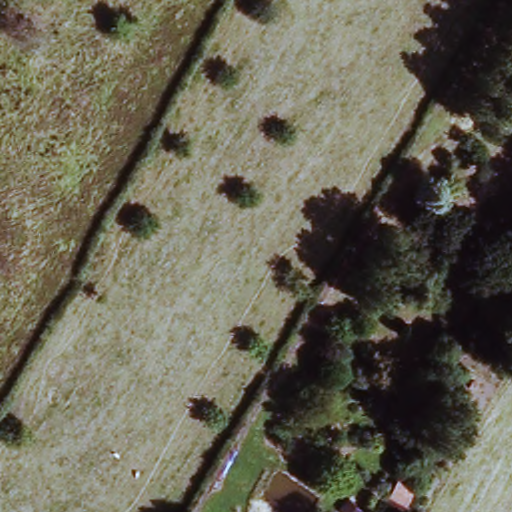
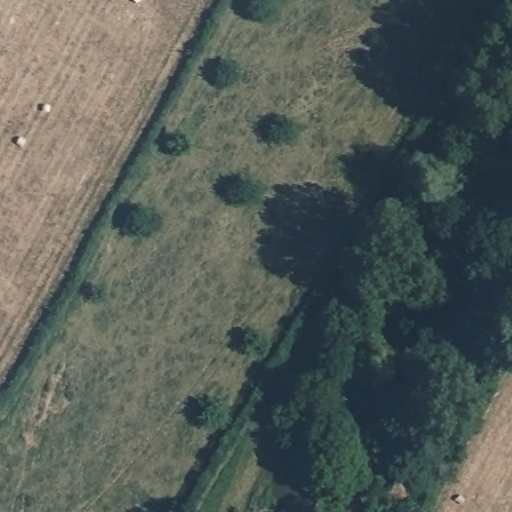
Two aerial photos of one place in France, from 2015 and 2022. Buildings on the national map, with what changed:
[]

